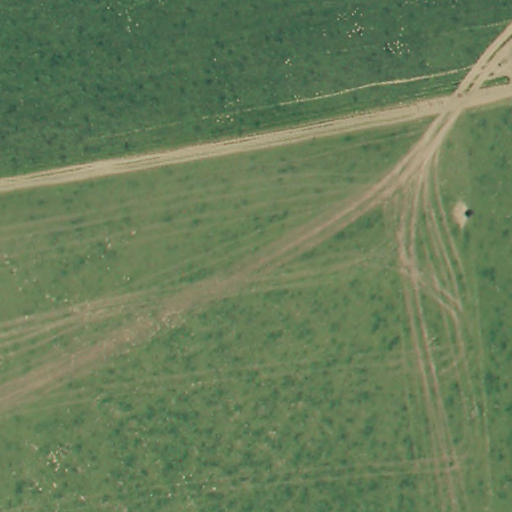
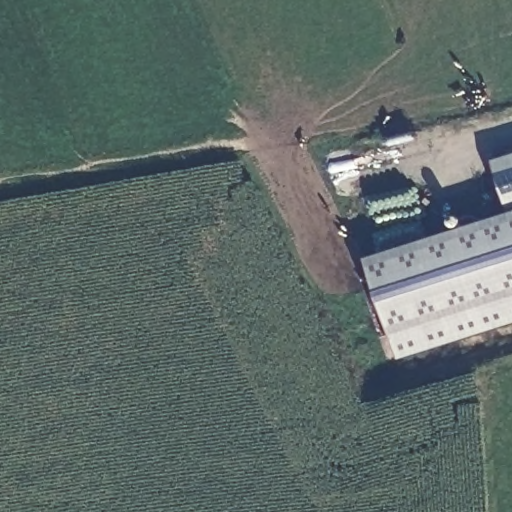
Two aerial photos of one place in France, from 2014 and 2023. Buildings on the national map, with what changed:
new [(509,211),(493,159),(512,153),(512,322),(398,357),(364,256),(509,211)]

